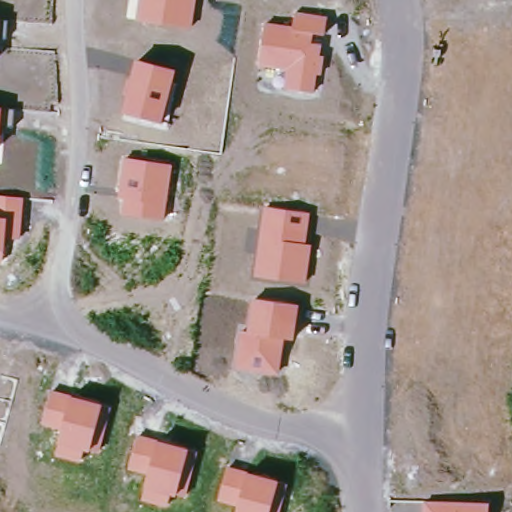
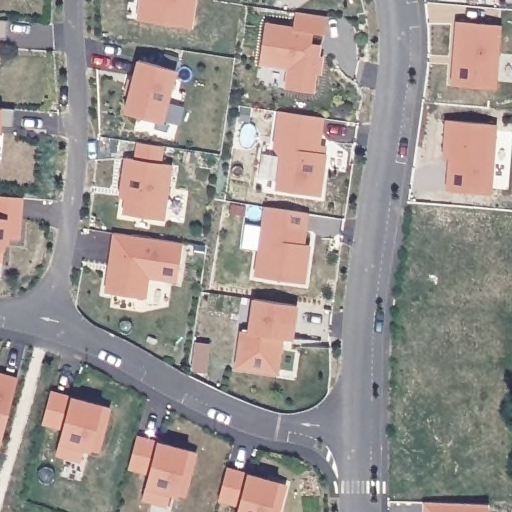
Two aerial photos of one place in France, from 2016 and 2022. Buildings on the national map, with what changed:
unchanged [(135,21),(138,0),(197,0),(192,30),(135,21)]
unchanged [(294,27),(296,12),(327,16),(323,37),(313,35),(311,44),(321,45),(321,55),(324,57),(321,76),(316,76),(314,92),(286,87),(286,71),(260,67),(266,24),(294,27)]
unchanged [(5,39),(0,38),(0,19),(6,20),(5,39)]
new [(458,22),(500,25),(495,89),(453,85),(458,22)]
unchanged [(177,70),(164,124),(122,113),(128,92),(124,92),(128,77),(133,78),(138,60),(177,70)]
unchanged [(13,126),(0,125),(0,108),(15,110),(13,126)]
new [(282,112),(323,117),(317,152),(325,154),(319,196),(279,190),(284,149),(277,148),(282,112)]
new [(447,121),(496,125),(490,194),(448,191),(450,152),(444,151),(447,121)]
unchanged [(171,167),(163,221),(120,214),(123,195),(118,194),(124,159),(171,167)]
unchanged [(19,240),(6,238),(5,252),(2,251),(0,262),(0,196),(22,199),(19,240)]
unchanged [(309,214),(304,245),(310,245),(304,283),(253,276),(264,207),(309,214)]
new [(114,232),(183,242),(176,282),(148,277),(144,299),(106,293),(114,232)]
unchanged [(298,307),(292,342),(282,340),(278,375),(234,367),(239,332),(248,333),(254,298),(298,307)]
new [(0,447),(0,376),(18,381),(0,447)]
unchanged [(110,406),(98,452),(84,450),(80,462),(55,457),(62,430),(41,424),(50,390),(110,406)]
unchanged [(197,451),(184,498),(172,496),(168,507),(143,500),(149,475),(128,468),(137,435),(197,451)]
unchanged [(286,483),(279,512),(237,512),(239,505),(218,499),(227,466),(286,483)]
unchanged [(489,504),(489,512),(424,512),(424,502),(489,504)]

